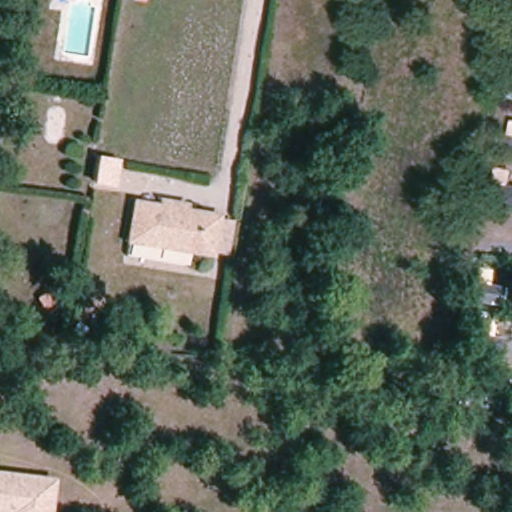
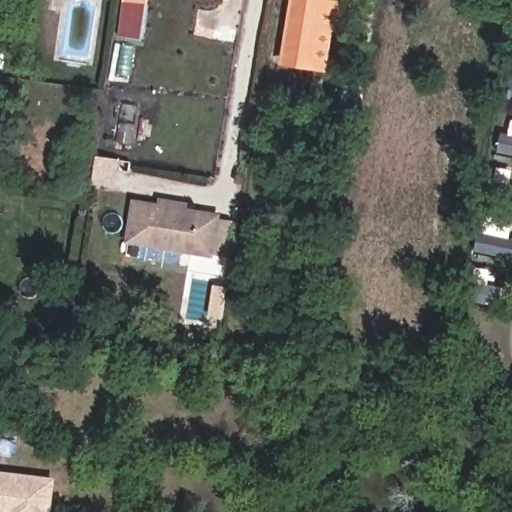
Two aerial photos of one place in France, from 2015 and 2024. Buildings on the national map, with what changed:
new [(291,0),(344,0),(340,22),(336,21),(327,72),(280,65),(291,0)]
new [(97,156),(122,160),(118,187),(93,184),(97,156)]
unchanged [(512,193),(507,192),(510,172),(512,172),(512,193)]
unchanged [(215,215),(211,261),(124,245),(133,202),(215,215)]
unchanged [(2,481),(3,470),(51,474),(48,512),(7,512),(7,511),(0,511),(0,481),(2,481)]

